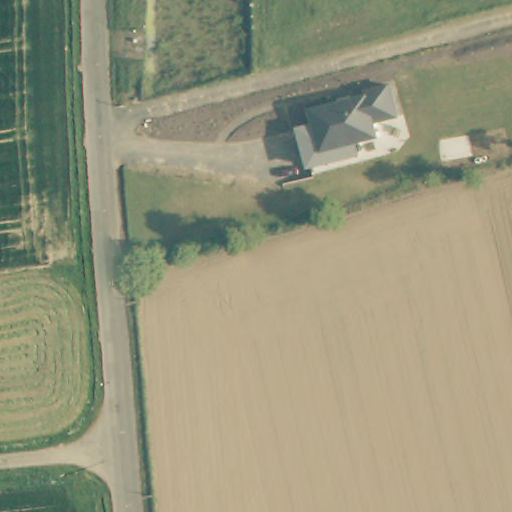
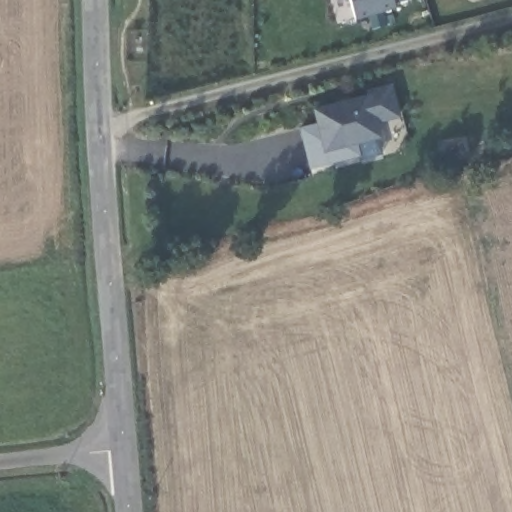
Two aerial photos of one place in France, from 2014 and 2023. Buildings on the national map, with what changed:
new [(394,4),(395,7),(356,20),(350,0),(408,0),(394,4)]
unchanged [(300,128),(318,123),(315,109),(369,95),(367,90),(391,84),(400,118),(378,125),(380,136),(358,142),(360,154),(310,168),(300,128)]

